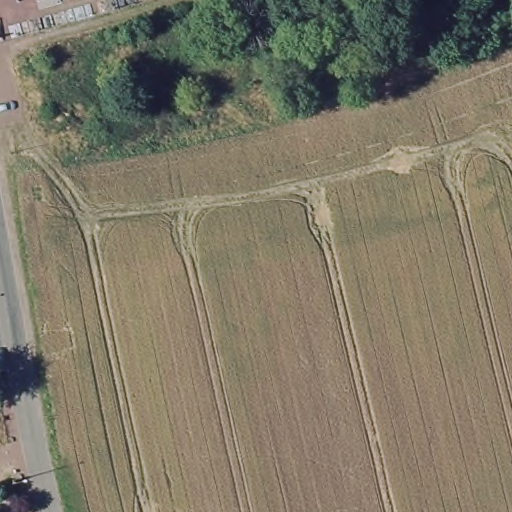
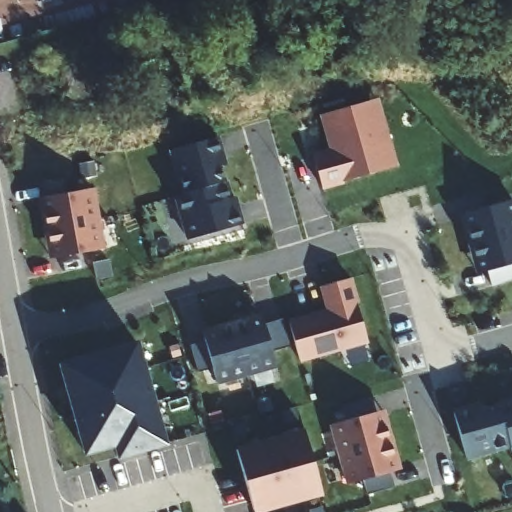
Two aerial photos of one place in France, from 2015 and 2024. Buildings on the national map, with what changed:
new [(375,100),(385,132),(395,166),(322,189),(313,159),(333,152),(323,115),(375,100)]
new [(217,138),(240,226),(187,239),(176,198),(185,195),(172,151),(217,138)]
new [(58,258),(55,241),(48,242),(43,215),(50,214),(46,198),(93,189),(104,250),(58,258)]
new [(462,214),(512,201),(512,263),(478,274),(462,214)]
new [(329,311),(322,286),(350,279),(366,342),(300,361),(289,322),(329,311)]
new [(276,366),(215,383),(202,340),(220,334),(218,327),(246,318),(248,326),(264,321),(276,366)]
new [(167,445),(116,459),(113,448),(83,456),(58,364),(137,341),(167,445)]
new [(512,451),(511,449),(468,462),(455,413),(512,399),(512,451)]
new [(380,429),(386,427),(393,453),(388,454),(393,473),(346,485),(331,425),(375,412),(380,429)]
new [(263,512),(253,512),(235,450),(303,429),(323,496),(263,512)]

